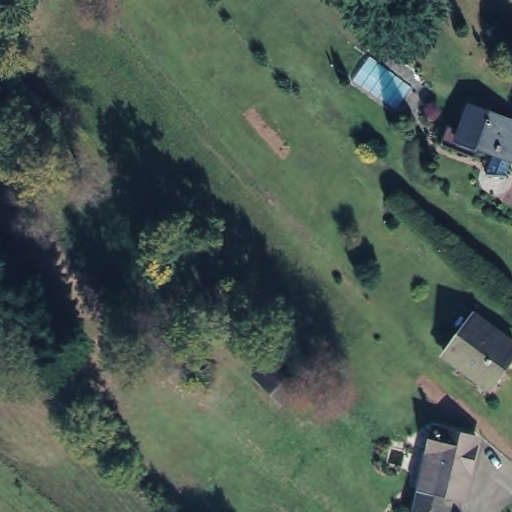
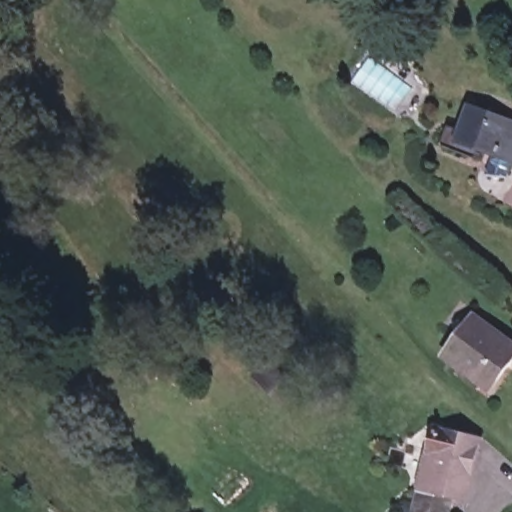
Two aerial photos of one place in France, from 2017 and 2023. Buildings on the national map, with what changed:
unchanged [(512,161),(452,147),(466,97),(512,112),(512,161)]
unchanged [(485,378),(442,347),(470,310),(510,342),(485,378)]
unchanged [(460,487),(447,487),(440,512),(417,507),(422,478),(412,476),(420,438),(429,440),(435,417),(472,425),(460,487)]

